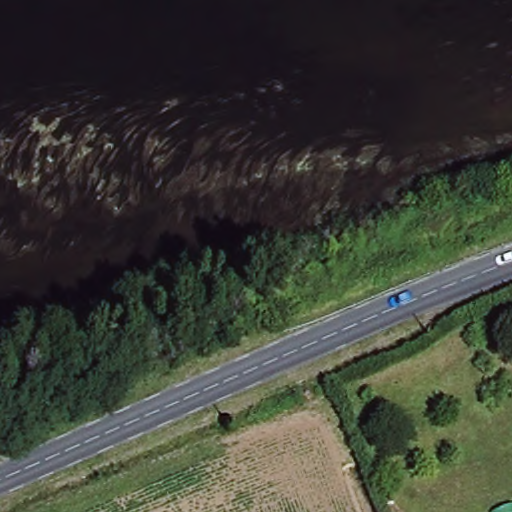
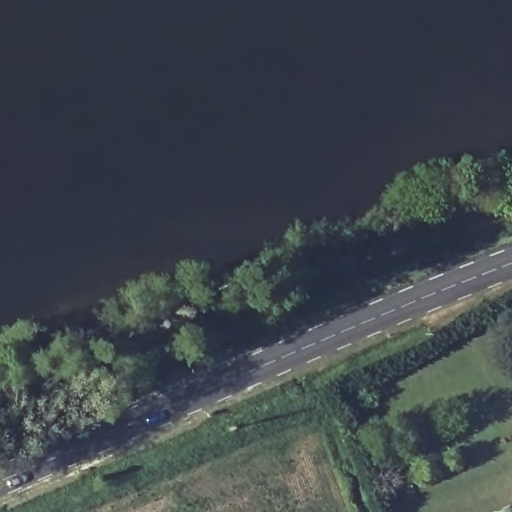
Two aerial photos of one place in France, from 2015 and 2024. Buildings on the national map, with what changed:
unchanged [(512,507),(512,512),(498,512),(512,507)]

